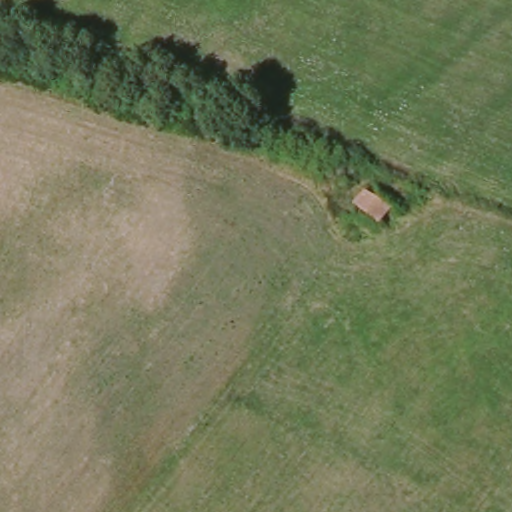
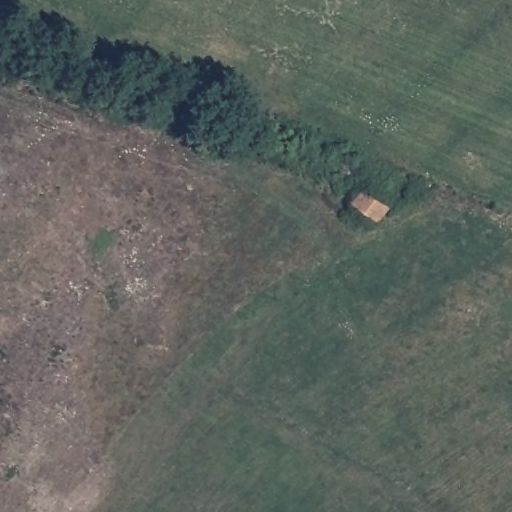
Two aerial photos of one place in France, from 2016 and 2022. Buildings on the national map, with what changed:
unchanged [(379,222),(355,205),(366,191),(390,208),(379,222)]

